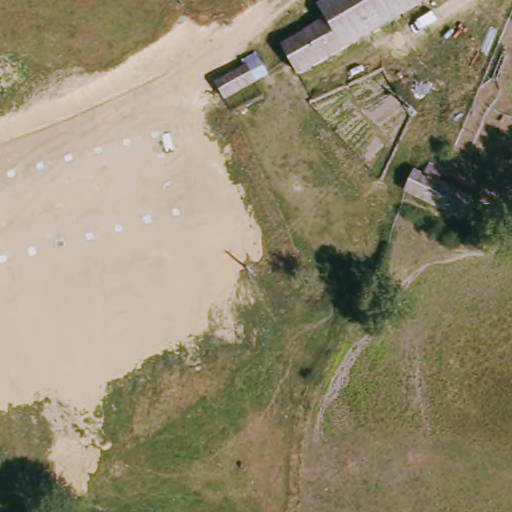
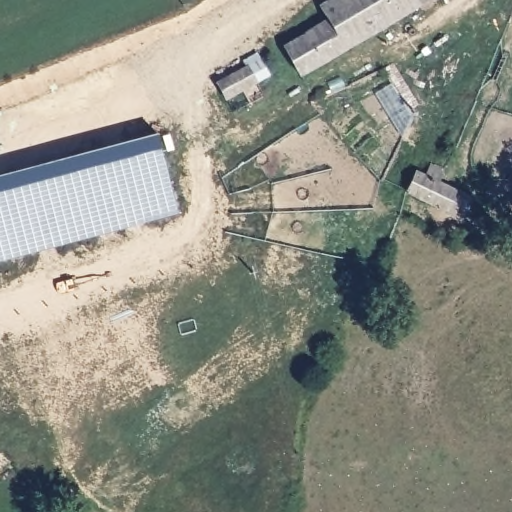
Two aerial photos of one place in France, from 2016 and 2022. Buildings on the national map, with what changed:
unchanged [(284,46),(330,20),(321,7),(333,0),(433,0),(422,7),(302,77),(284,46)]
unchanged [(218,82),(250,66),(247,62),(261,55),(272,76),(229,102),(218,82)]
demolished [(140,129),(162,118),(173,140),(153,152),(140,129)]
new [(158,134),(177,210),(0,259),(0,175),(158,134)]
unchanged [(452,170),(447,185),(476,201),(467,220),(408,189),(418,170),(432,177),(440,162),(442,163),(452,170)]

